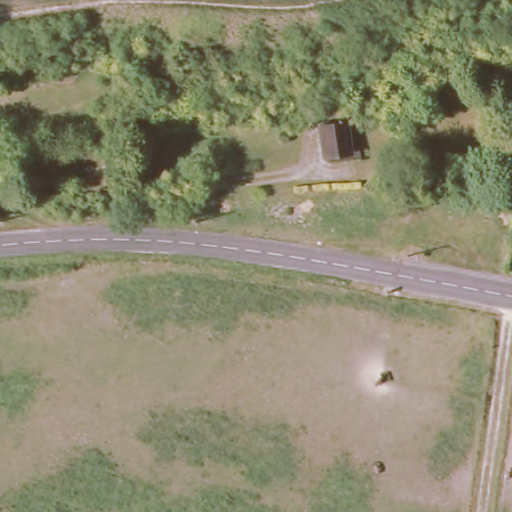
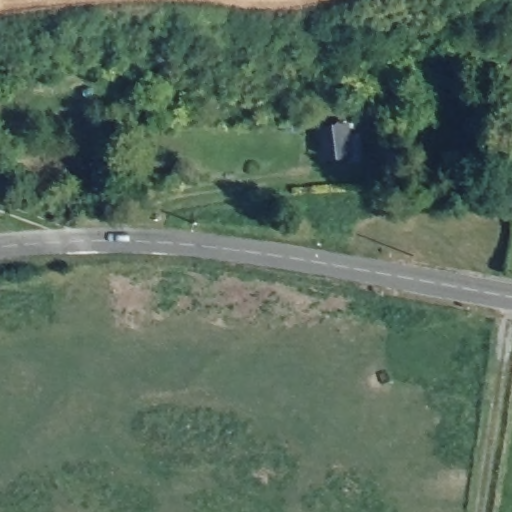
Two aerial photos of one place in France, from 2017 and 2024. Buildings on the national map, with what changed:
unchanged [(345,130),(349,154),(326,157),(322,131),(345,130)]

